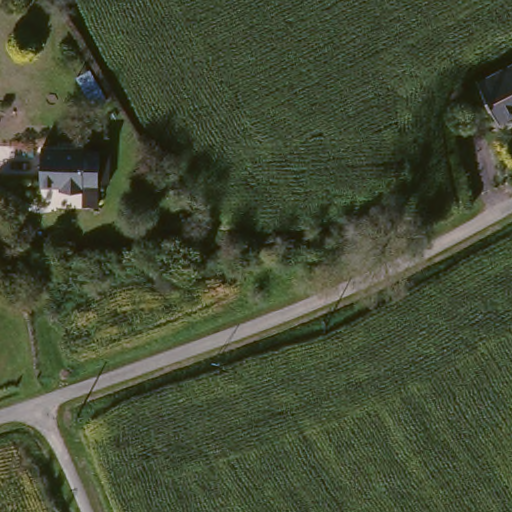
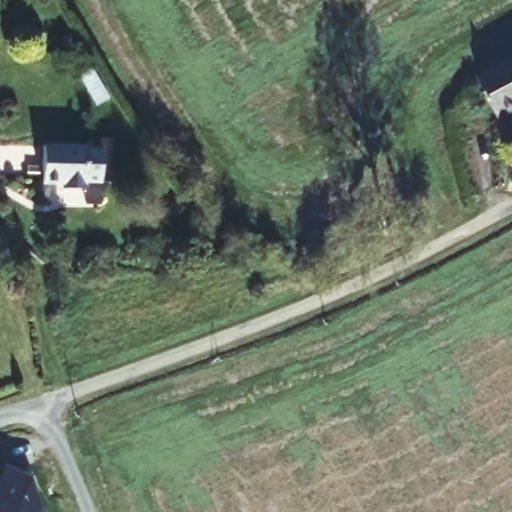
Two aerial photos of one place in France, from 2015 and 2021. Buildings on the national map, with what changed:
unchanged [(512,114),(500,121),(479,82),(512,65),(512,114)]
unchanged [(48,146),(88,147),(90,147),(90,150),(105,150),(105,182),(91,182),(89,182),(89,185),(47,184),(48,146)]
new [(24,475),(29,477),(35,493),(42,512),(0,512),(0,467),(3,465),(24,475)]

